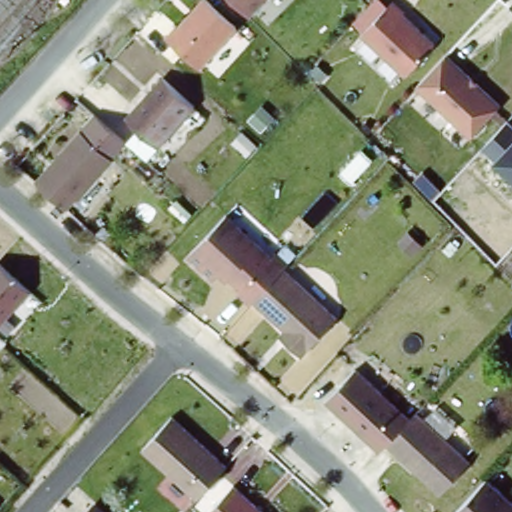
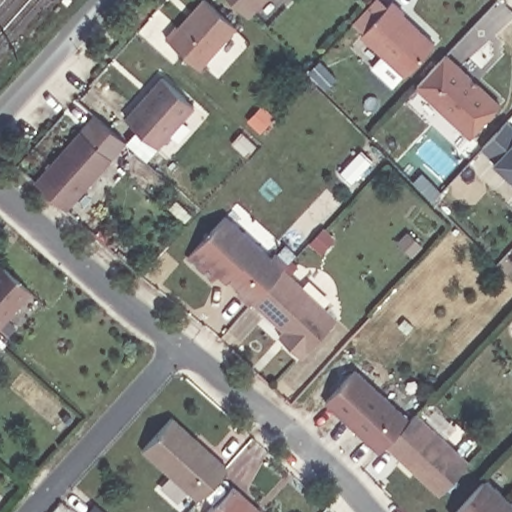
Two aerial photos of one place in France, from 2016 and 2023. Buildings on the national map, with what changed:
unchanged [(171,33),(206,0),(216,0),(243,26),(208,65),(171,33)]
unchanged [(251,16),(233,0),(265,0),(251,16)]
unchanged [(390,1),(435,41),(406,76),(358,35),(390,1)]
unchanged [(499,103),(469,137),(415,88),(447,55),(499,103)]
unchanged [(134,117),(168,78),(198,106),(164,144),(134,117)]
unchanged [(512,180),(493,162),(482,148),(507,123),(512,126),(512,180)]
unchanged [(88,133),(117,159),(70,209),(41,183),(88,133)]
unchanged [(231,218),(276,258),(281,253),(294,264),(290,268),(259,300),(259,301),(256,304),(243,293),(246,289),(226,272),(218,281),(192,259),(231,218)]
unchanged [(4,260),(35,292),(1,332),(0,331),(0,265),(4,260)]
unchanged [(291,328),(259,300),(290,268),(344,316),(308,354),(293,341),(285,334),(291,328)]
unchanged [(331,402),(361,370),(417,419),(394,444),(387,451),(331,402)]
unchanged [(417,419),(424,413),(477,463),(447,494),(394,444),(417,419)]
unchanged [(145,450),(176,418),(231,470),(200,502),(145,450)]
unchanged [(512,496),(512,512),(462,512),(494,480),(512,496)]
unchanged [(218,512),(241,488),(266,512),(218,512)]

